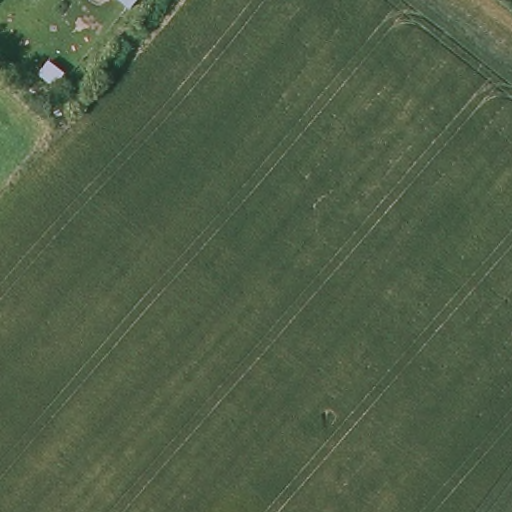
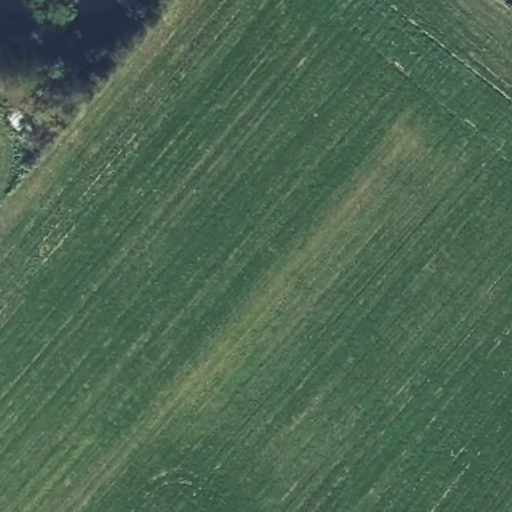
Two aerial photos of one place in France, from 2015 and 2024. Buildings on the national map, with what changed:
[]

